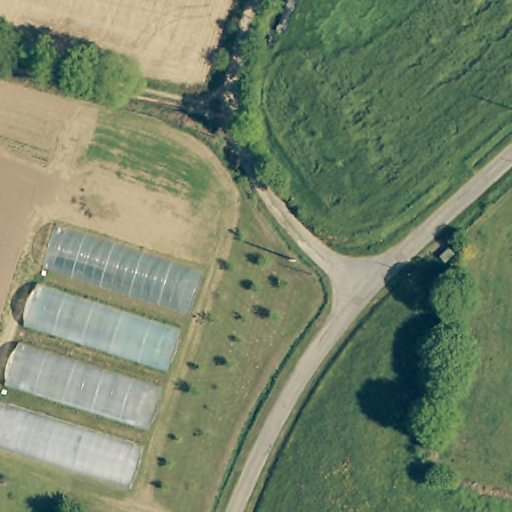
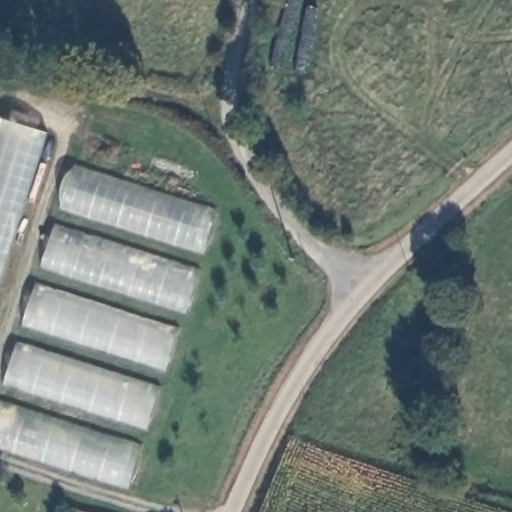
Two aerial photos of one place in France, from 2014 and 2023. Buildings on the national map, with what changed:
new [(0,276),(0,118),(46,133),(0,276)]
new [(217,214),(205,250),(61,205),(74,168),(217,214)]
unchanged [(59,225),(201,271),(190,308),(45,264),(59,225)]
unchanged [(192,331),(180,368),(28,320),(42,280),(192,331)]
unchanged [(176,383),(163,425),(10,380),(26,336),(176,383)]
unchanged [(0,401),(139,442),(129,485),(0,450),(0,401)]

